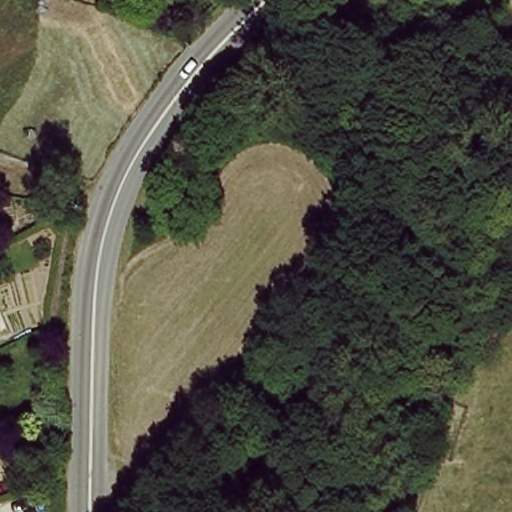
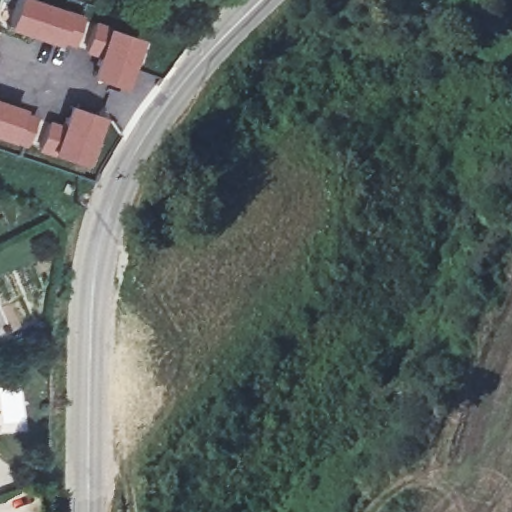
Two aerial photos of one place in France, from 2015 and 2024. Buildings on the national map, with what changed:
new [(46,0),(83,10),(72,46),(7,30),(17,0),(46,0)]
new [(91,20),(140,38),(122,87),(88,76),(95,57),(82,52),(91,20)]
new [(26,146),(0,138),(0,99),(38,113),(26,146)]
new [(45,116),(61,121),(67,104),(102,114),(85,165),(37,151),(45,116)]

